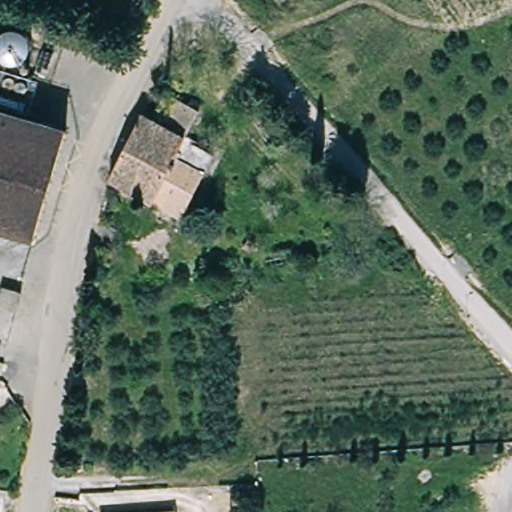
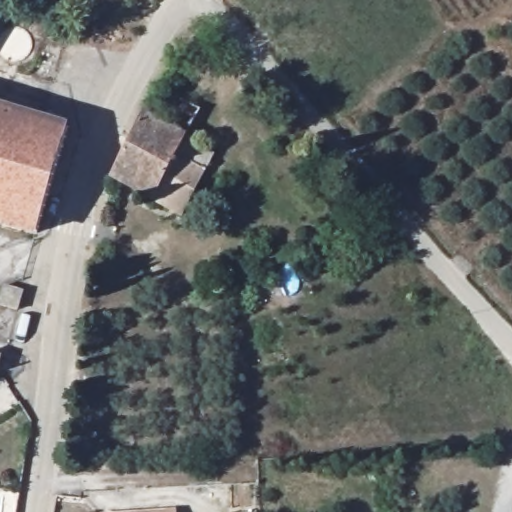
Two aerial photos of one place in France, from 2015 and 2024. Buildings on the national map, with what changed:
unchanged [(175,96),(203,107),(191,134),(181,158),(210,172),(188,215),(112,174),(125,145),(146,111),(167,122),(175,96)]
unchanged [(70,134),(37,236),(0,223),(0,109),(70,134)]
unchanged [(28,285),(24,303),(8,298),(13,280),(28,285)]
unchanged [(12,349),(5,363),(0,361),(0,344),(12,349)]

